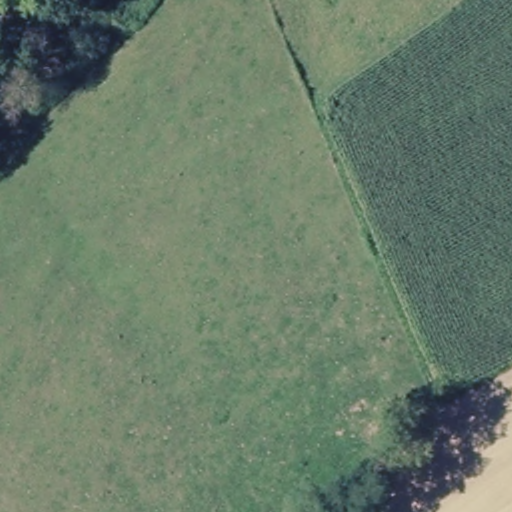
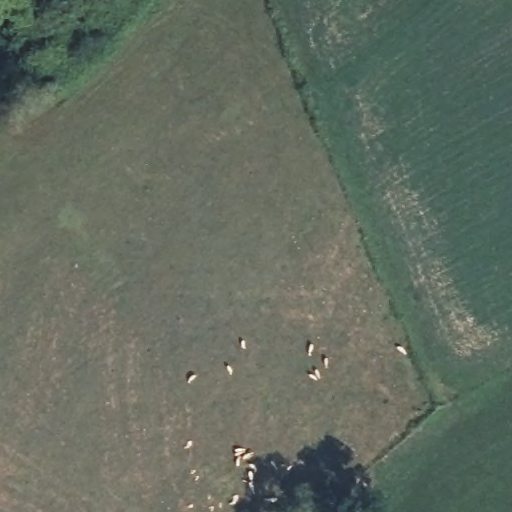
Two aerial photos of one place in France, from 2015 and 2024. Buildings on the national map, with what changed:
[]

